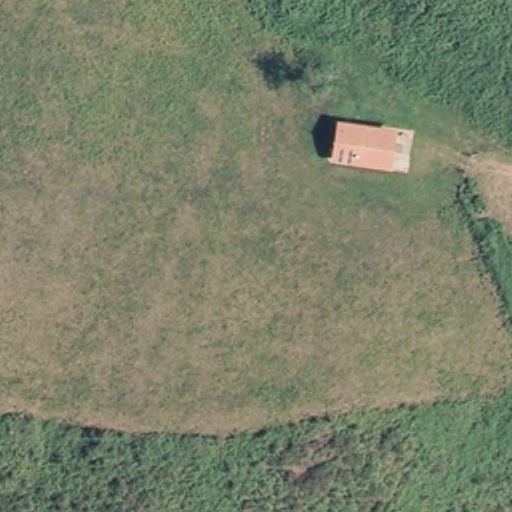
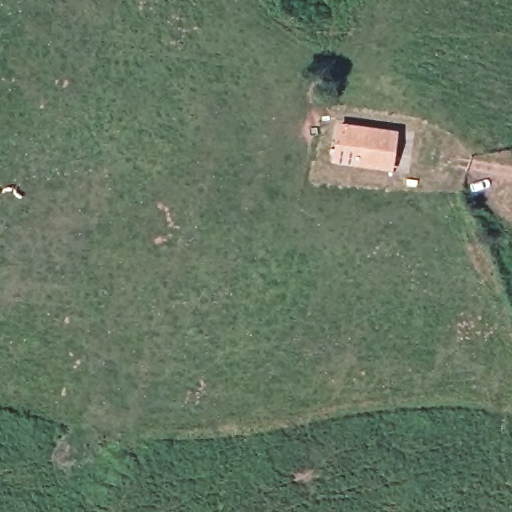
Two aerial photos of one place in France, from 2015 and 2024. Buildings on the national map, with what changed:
unchanged [(398,165),(331,152),(337,122),(405,133),(398,165)]

